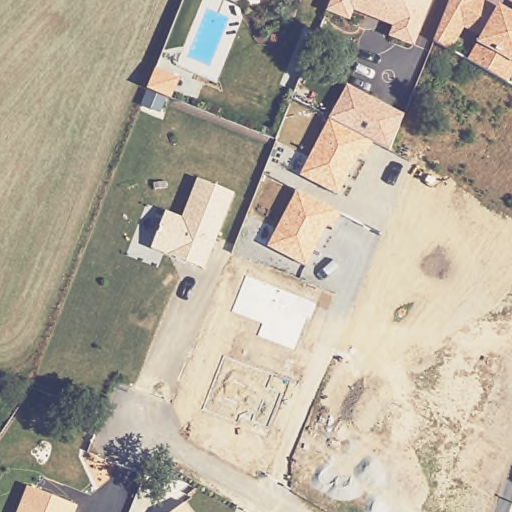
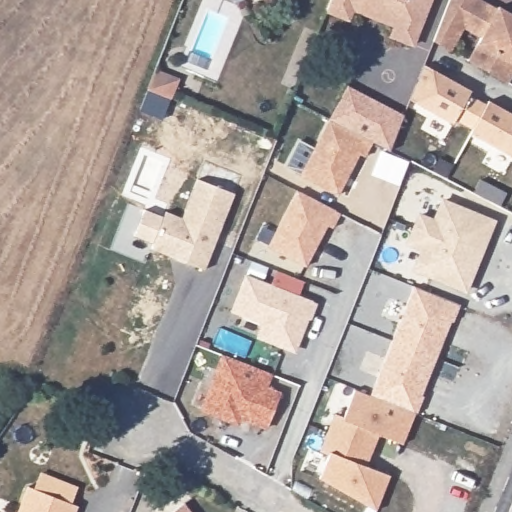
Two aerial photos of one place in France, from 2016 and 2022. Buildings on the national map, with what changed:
unchanged [(434,0),(416,47),(388,38),(392,27),(353,12),(350,21),(327,12),(331,0),(434,0)]
unchanged [(482,0),(481,1),(512,15),(512,72),(506,82),(467,61),(478,38),(464,30),(453,50),(432,40),(448,0),(482,0)]
new [(425,65),(471,91),(453,123),(411,100),(425,65)]
new [(157,68),(180,77),(171,101),(147,92),(157,68)]
unchanged [(347,86),(406,115),(391,148),(330,119),(347,86)]
new [(469,94),(486,103),(488,98),(512,112),(512,156),(471,133),(472,129),(455,119),(457,116),(469,94)]
unchanged [(366,158),(359,155),(338,195),(301,176),(330,119),(375,140),(366,158)]
unchanged [(182,217),(198,178),(234,192),(204,271),(151,249),(166,211),(182,217)]
unchanged [(333,229),(328,226),(306,267),(267,246),(296,191),(342,213),(333,229)]
new [(417,211),(433,217),(441,197),(497,219),(467,293),(412,271),(419,250),(406,244),(417,211)]
unchanged [(245,274),(270,284),(277,270),(305,281),(300,295),(318,302),(311,320),(309,319),(296,353),(257,338),(262,323),(231,312),(245,274)]
new [(328,453),(319,449),(335,413),(342,415),(354,388),(369,394),(412,285),(460,302),(416,412),(403,443),(379,434),(367,464),(390,474),(376,511),(318,477),(328,453)]
unchanged [(222,355),(274,375),(268,388),(281,393),(267,429),(241,420),(239,426),(201,411),(222,355)]
unchanged [(80,505),(77,512),(18,512),(27,487),(80,505)]
unchanged [(185,503),(191,512),(173,512),(185,503)]

